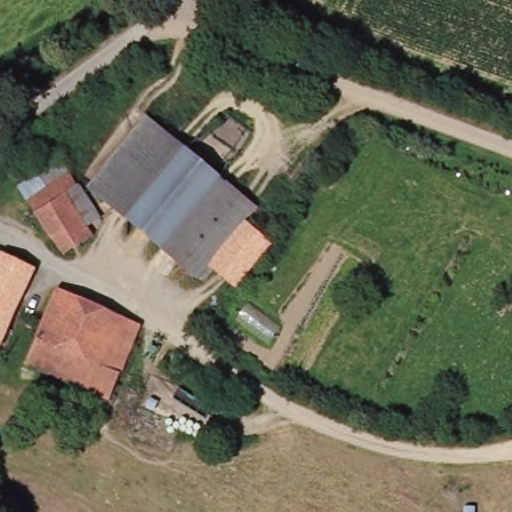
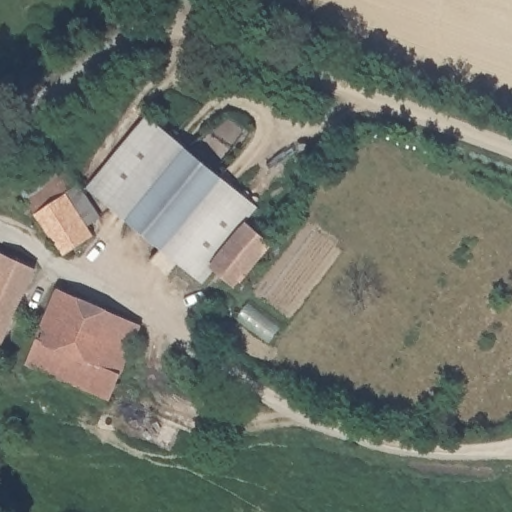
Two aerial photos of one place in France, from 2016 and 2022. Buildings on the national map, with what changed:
unchanged [(199,278),(90,187),(147,119),(258,210),(247,223),(210,265),(199,278)]
unchanged [(73,172),(106,229),(85,240),(63,252),(58,242),(31,196),(73,172)]
unchanged [(272,244),(238,287),(210,265),(247,223),(272,244)]
unchanged [(0,346),(0,257),(34,272),(0,346)]
unchanged [(141,328),(109,401),(26,366),(57,293),(141,328)]
unchanged [(279,426),(292,432),(275,470),(257,512),(242,512),(262,465),(279,426)]

